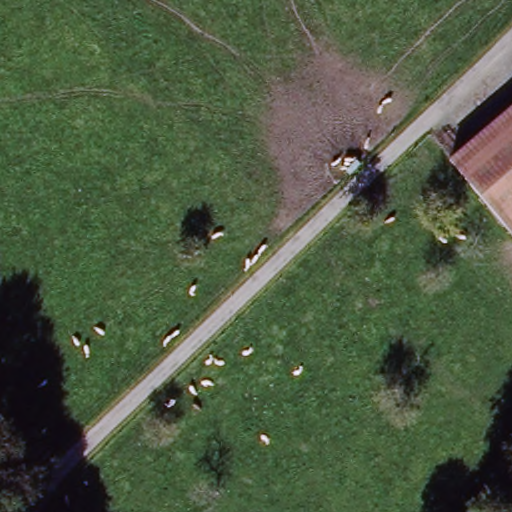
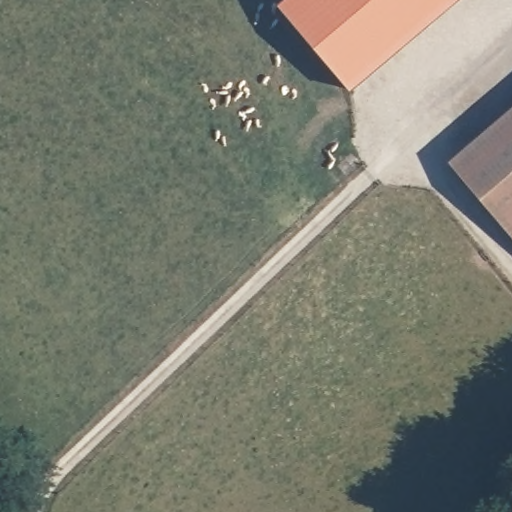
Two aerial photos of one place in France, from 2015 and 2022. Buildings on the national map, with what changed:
new [(350,91),(277,5),(283,0),(457,0),(350,91)]
unchanged [(444,162),(512,105),(512,241),(444,162)]

